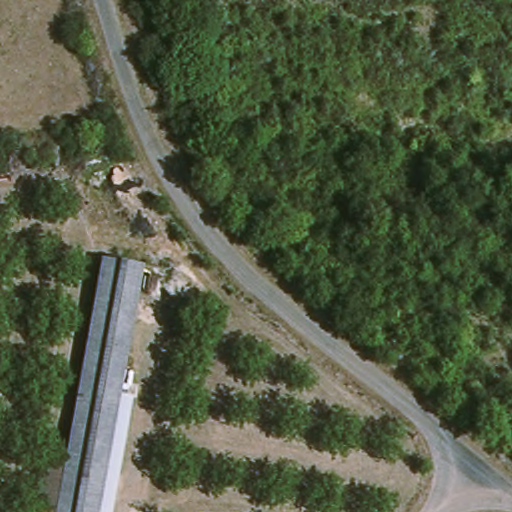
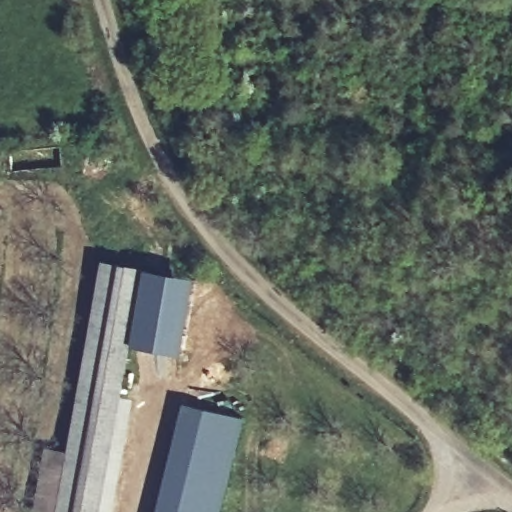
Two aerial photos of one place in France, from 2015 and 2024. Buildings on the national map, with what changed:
unchanged [(93,512),(55,512),(102,263),(139,271),(93,512)]
new [(184,354),(125,346),(139,271),(197,277),(184,354)]
new [(115,395),(137,399),(116,512),(93,512),(115,395)]
new [(221,512),(155,512),(181,403),(245,419),(221,512)]

